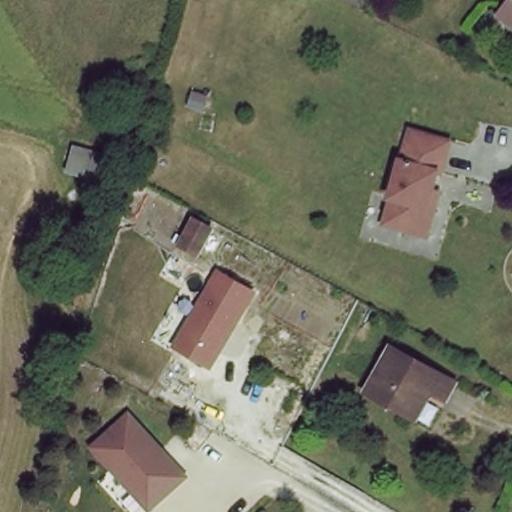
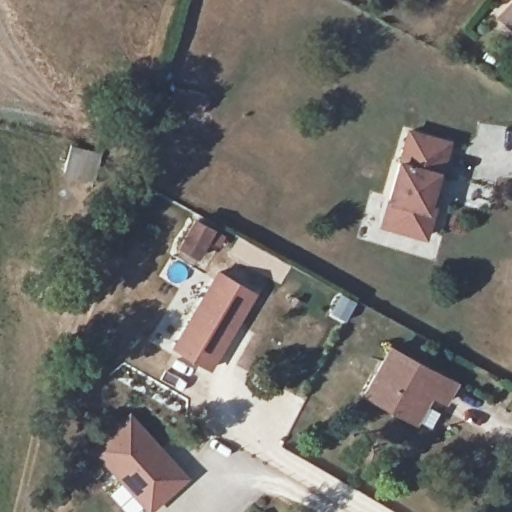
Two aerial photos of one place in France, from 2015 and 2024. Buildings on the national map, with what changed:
unchanged [(512,2),(512,31),(498,19),(512,2)]
unchanged [(425,242),(413,237),(383,227),(389,202),(383,199),(394,160),(400,162),(408,135),(445,146),(438,171),(432,169),(425,197),(437,200),(425,242)]
unchanged [(218,223),(206,245),(190,236),(204,213),(218,223)]
unchanged [(173,344),(219,269),(258,293),(210,369),(173,344)]
unchanged [(462,384),(452,404),(433,394),(418,422),(366,389),(394,343),(462,384)]
unchanged [(128,406),(188,473),(148,508),(89,442),(128,406)]

